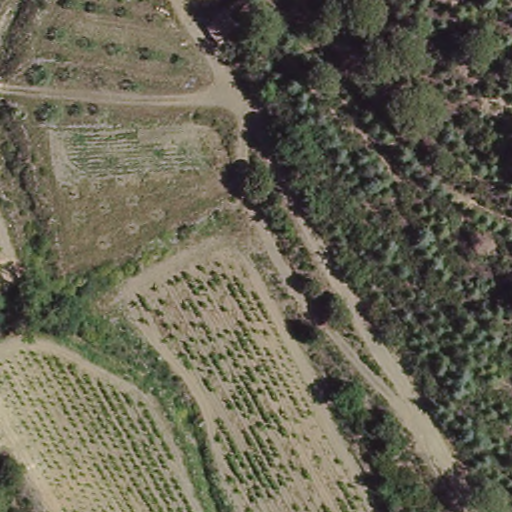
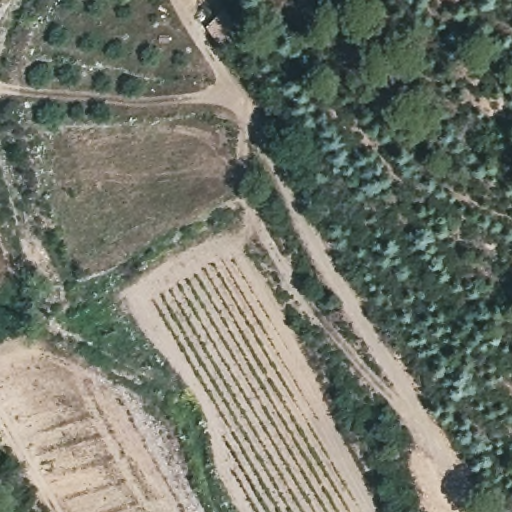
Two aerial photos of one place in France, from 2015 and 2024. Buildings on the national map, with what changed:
unchanged [(221,11),(233,27),(212,41),(201,25),(221,11)]

